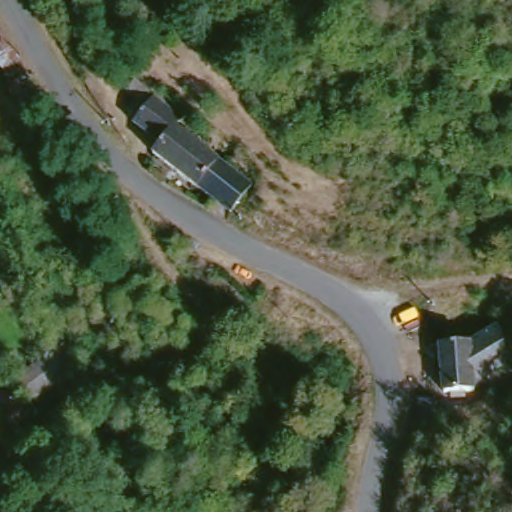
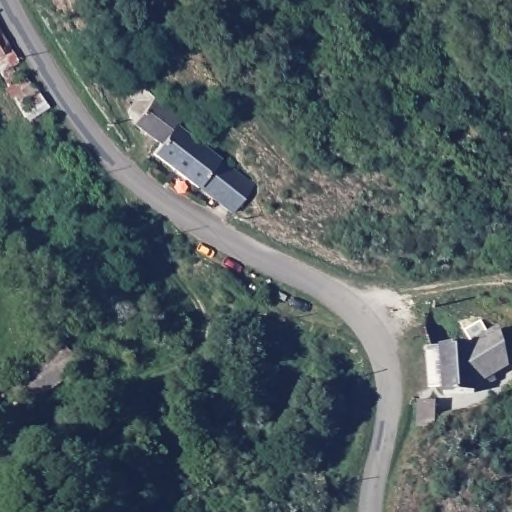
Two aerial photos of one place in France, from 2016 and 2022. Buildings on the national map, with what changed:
unchanged [(0,54),(0,6),(18,42),(0,54)]
unchanged [(142,82),(190,126),(185,133),(257,190),(237,217),(202,190),(162,160),(170,150),(135,116),(122,97),(123,97),(142,82)]
unchanged [(480,346),(511,331),(512,336),(512,365),(485,377),(485,390),(453,392),(448,346),(480,346)]
unchanged [(72,375),(47,393),(30,371),(55,355),(72,375)]
unchanged [(42,415),(20,431),(0,405),(0,393),(19,380),(42,415)]
unchanged [(421,420),(420,401),(436,400),(437,417),(421,420)]
unchanged [(0,441),(0,405),(20,431),(0,441)]

